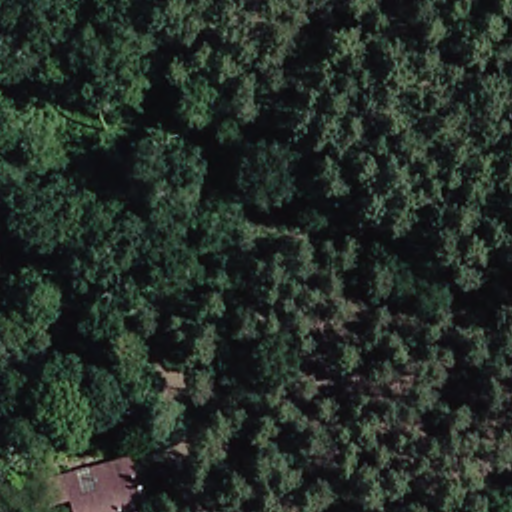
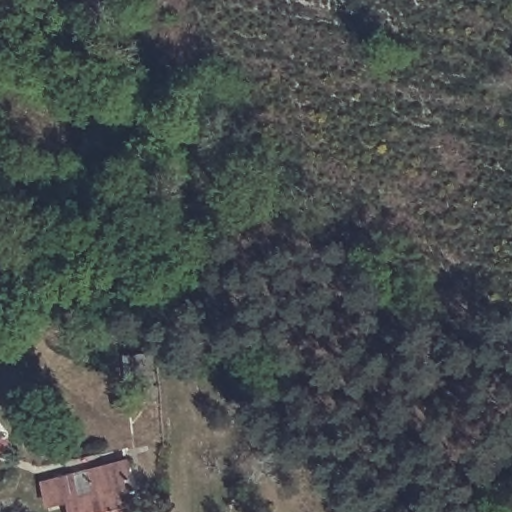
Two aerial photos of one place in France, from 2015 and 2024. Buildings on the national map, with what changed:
unchanged [(136,511),(130,512),(66,512),(63,501),(40,505),(32,484),(121,460),(136,511)]

